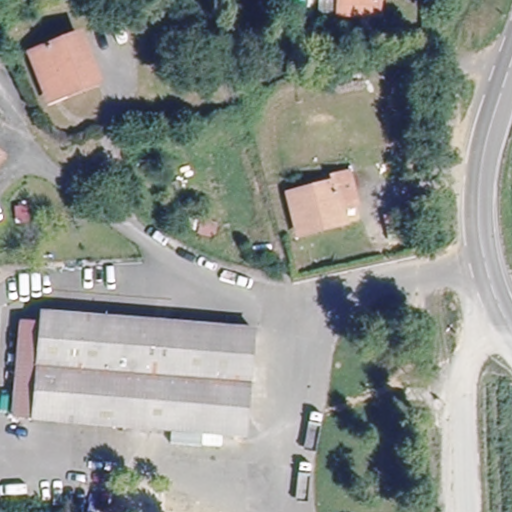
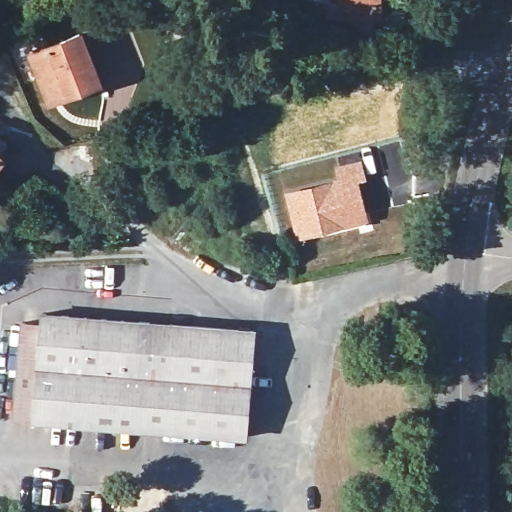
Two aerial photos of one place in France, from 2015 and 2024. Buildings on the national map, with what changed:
unchanged [(374,19),(340,18),(340,0),(374,0),(374,19)]
unchanged [(86,30),(105,76),(72,91),(70,88),(53,95),(36,51),(86,30)]
unchanged [(324,189),(323,181),(336,178),(343,211),(330,214),(331,228),(292,234),(285,195),(324,189)]
unchanged [(37,326),(239,339),(233,445),(29,432),(29,427),(9,426),(13,331),(36,332),(37,326)]

